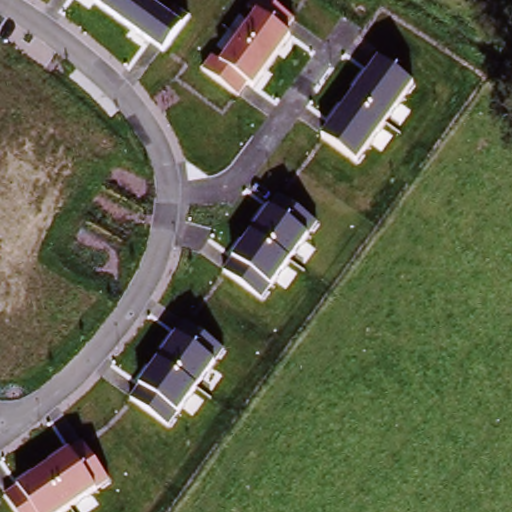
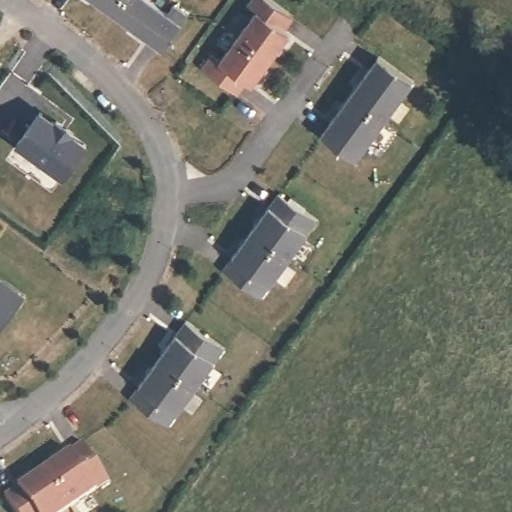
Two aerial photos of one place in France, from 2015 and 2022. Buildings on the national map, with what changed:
unchanged [(152,0),(183,21),(162,48),(93,0),(152,0)]
unchanged [(210,55),(219,62),(265,0),(270,0),(293,16),(285,28),(290,32),(253,84),(248,80),(237,94),(200,69),(210,55)]
unchanged [(320,134),(380,55),(413,80),(357,160),(320,134)]
new [(74,134),(90,145),(63,180),(16,146),(40,111),(74,134)]
unchanged [(220,270),(276,193),(315,220),(261,297),(220,270)]
new [(26,295),(0,333),(0,277),(26,295)]
unchanged [(128,399),(188,319),(224,348),(169,426),(128,399)]
unchanged [(1,495),(82,441),(106,479),(61,512),(14,512),(1,495)]

